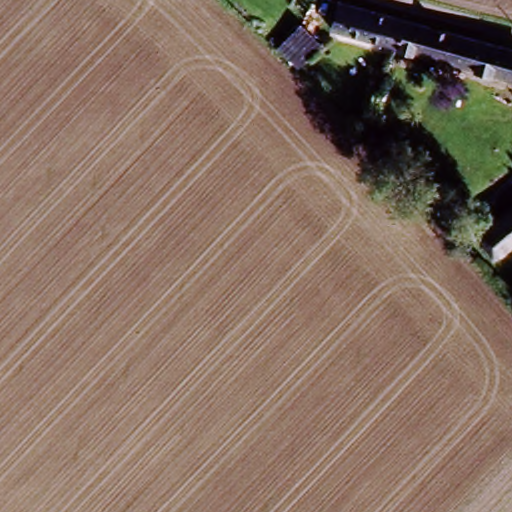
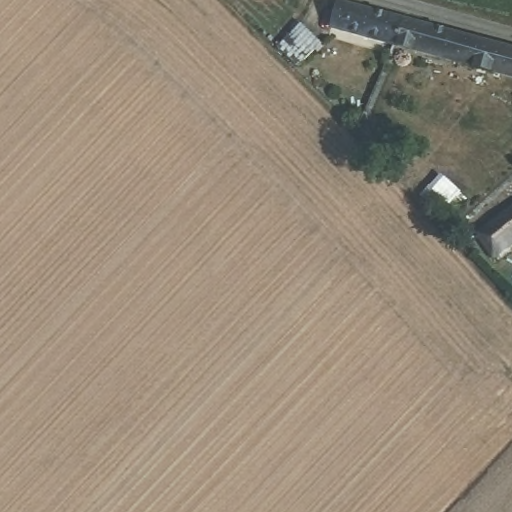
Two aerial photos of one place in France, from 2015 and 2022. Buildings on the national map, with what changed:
unchanged [(339,0),(343,0),(400,16),(394,41),(333,23),(339,0)]
unchanged [(400,16),(512,46),(512,75),(394,41),(400,16)]
unchanged [(319,43),(297,68),(277,48),(298,24),(319,43)]
unchanged [(493,257),(477,235),(512,210),(512,243),(493,257)]

